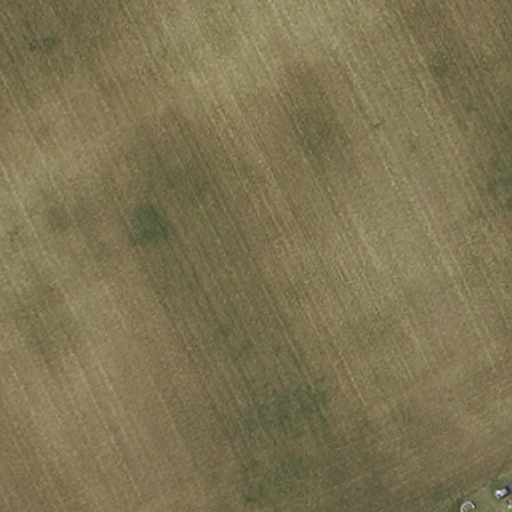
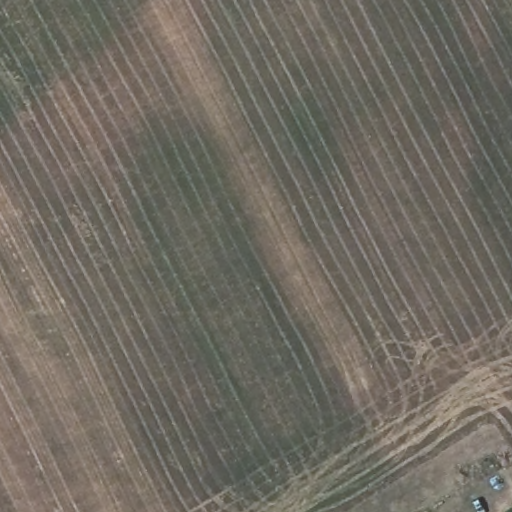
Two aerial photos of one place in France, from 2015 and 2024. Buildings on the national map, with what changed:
[]

